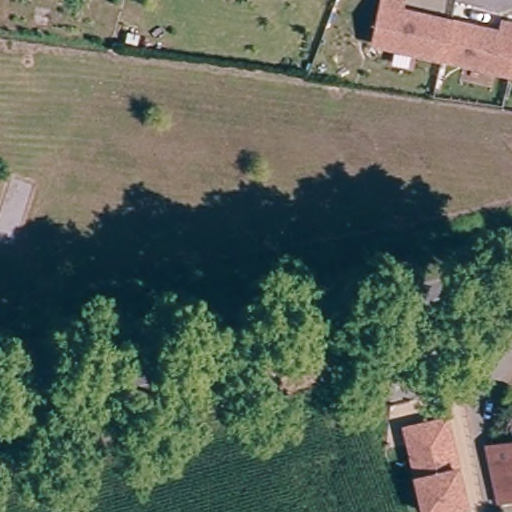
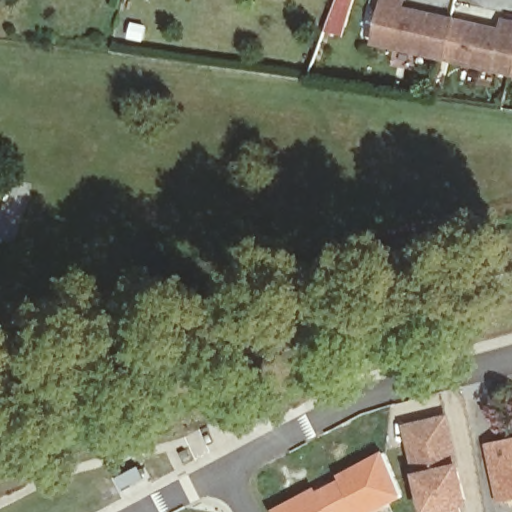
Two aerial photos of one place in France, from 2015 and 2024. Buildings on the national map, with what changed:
unchanged [(452,40),(449,62),(379,48),(388,1),(405,5),(403,15),(455,25),(452,40)]
unchanged [(452,40),(455,25),(506,35),(508,25),(512,26),(512,75),(449,62),(452,40)]
unchanged [(433,506),(415,436),(415,435),(411,422),(426,418),(450,412),(454,425),(468,477),(472,496),(465,497),(469,512),(442,512),(440,505),(433,506)]
unchanged [(491,446),(512,441),(512,500),(504,501),(491,446)]
new [(403,496),(373,512),(355,512),(338,477),(336,474),(382,451),(403,496)]
new [(316,488),(338,477),(355,512),(272,512),(271,510),(314,485),(316,488)]

